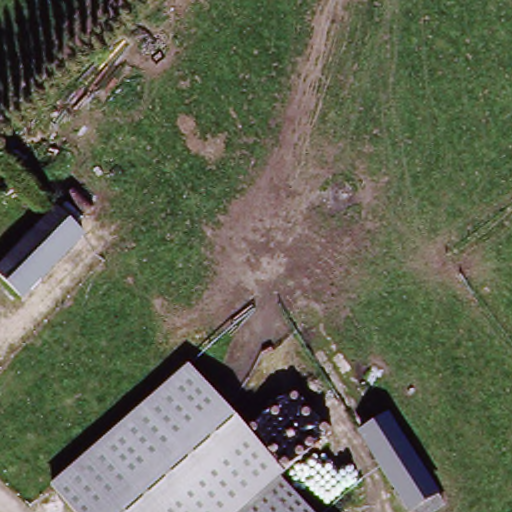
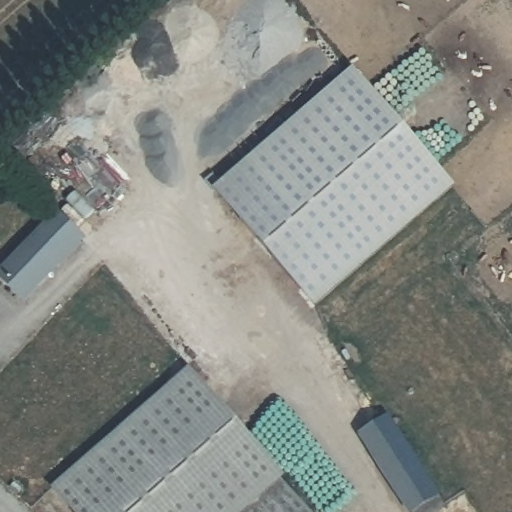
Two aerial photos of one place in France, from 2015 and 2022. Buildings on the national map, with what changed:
new [(454,186),(416,220),(322,94),(352,67),(454,186)]
new [(416,220),(381,251),(324,155),(302,113),(322,94),(416,220)]
new [(381,251),(321,306),(217,189),(302,113),(324,155),(381,251)]
unchanged [(1,285),(60,224),(84,247),(25,308),(1,285)]
unchanged [(248,512),(78,512),(54,480),(200,371),(285,484),(280,488),(248,512)]
unchanged [(360,428),(383,414),(439,505),(427,512),(411,512),(360,428)]
unchanged [(282,490),(299,512),(252,512),(282,490)]

